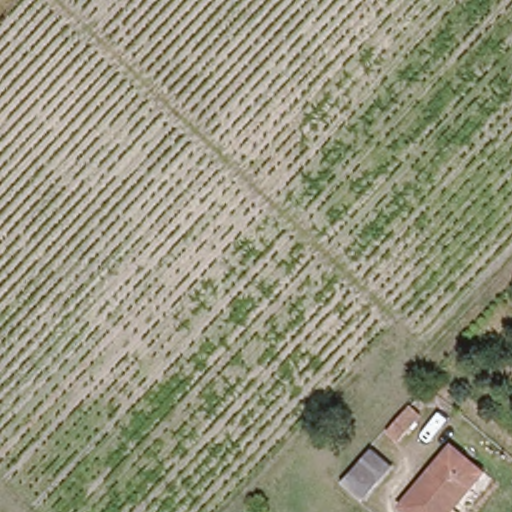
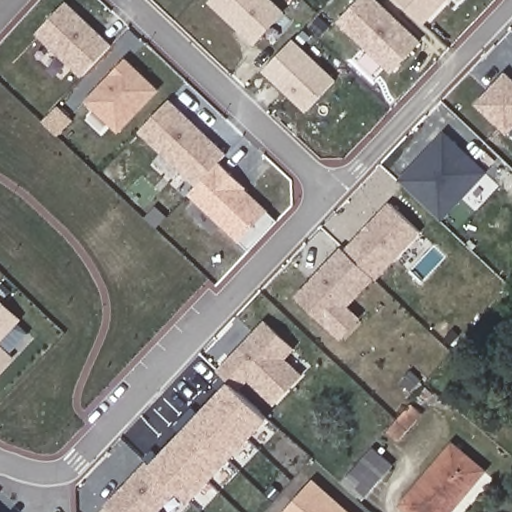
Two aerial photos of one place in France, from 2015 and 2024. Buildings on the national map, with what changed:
new [(279,11),(251,41),(208,1),(208,0),(267,0),(279,11)]
new [(416,40),(388,70),(336,20),(355,0),(374,0),(416,40)]
new [(420,21),(397,0),(440,0),(420,21)]
new [(106,45),(79,75),(32,32),(61,2),(106,45)]
new [(332,80),(304,110),(261,69),(288,39),(332,80)]
new [(154,89),(115,131),(83,100),(121,60),(154,89)]
new [(512,80),(512,122),(504,130),(474,102),(503,72),(512,80)]
new [(193,185),(185,176),(136,130),(165,100),(214,146),(223,154),(193,185)]
new [(69,120),(54,135),(39,121),(53,105),(69,120)]
new [(483,171),(438,220),(398,182),(442,134),(483,171)]
new [(246,250),(236,240),(186,194),(215,161),(242,186),(240,189),(264,211),(274,220),(246,250)]
new [(420,233),(375,280),(343,251),(389,204),(420,233)]
new [(163,216),(153,227),(141,217),(151,206),(163,216)]
new [(372,278),(325,327),(294,296),(341,249),(372,278)]
new [(0,334),(0,304),(16,318),(0,334)]
new [(356,320),(338,339),(325,327),(344,307),(356,320)]
new [(296,350),(286,360),(307,379),(278,408),(250,382),(239,393),(218,373),(265,321),(296,350)]
new [(0,365),(0,348),(8,356),(0,365)]
new [(239,393),(241,391),(269,418),(190,504),(179,493),(174,499),(144,471),(151,465),(228,383),(239,393)]
unchanged [(412,407),(422,416),(399,442),(389,434),(412,407)]
unchanged [(373,450),(392,466),(362,500),(343,483),(373,450)]
unchanged [(483,478),(467,496),(464,494),(447,512),(416,512),(405,502),(453,450),(483,478)]
new [(165,512),(105,512),(144,471),(176,501),(165,512)]
new [(346,512),(288,512),(314,483),(346,512)]

